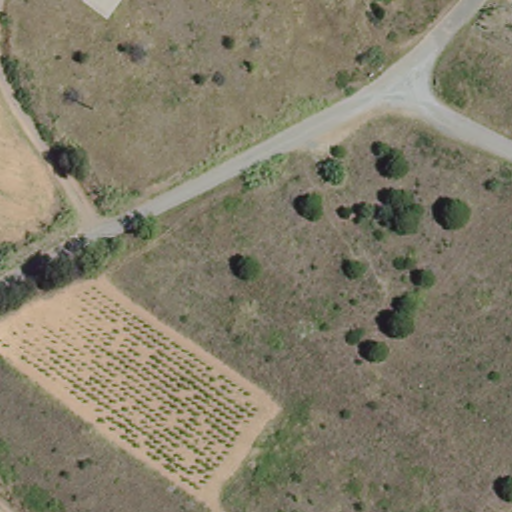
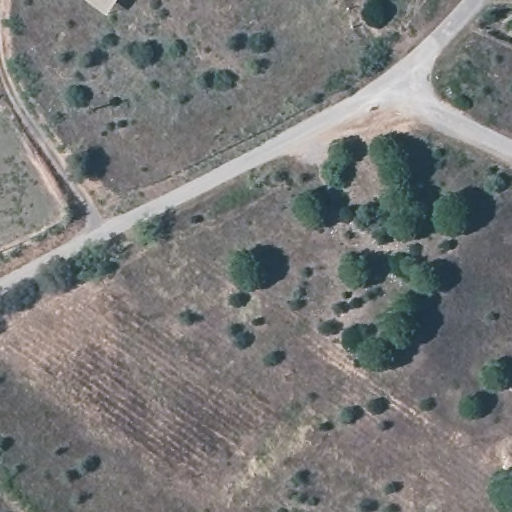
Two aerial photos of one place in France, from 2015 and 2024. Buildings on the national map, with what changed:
unchanged [(88,0),(123,0),(110,19),(88,0)]

